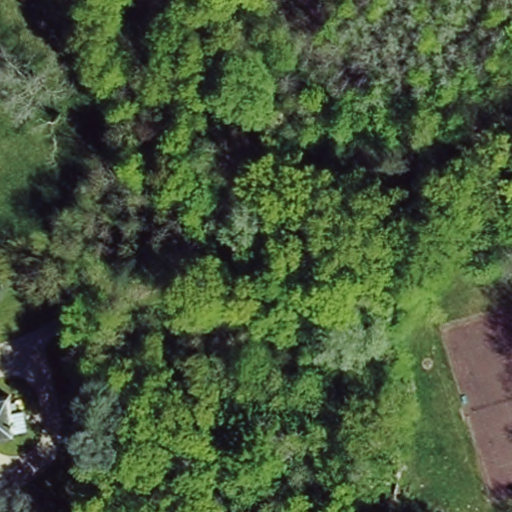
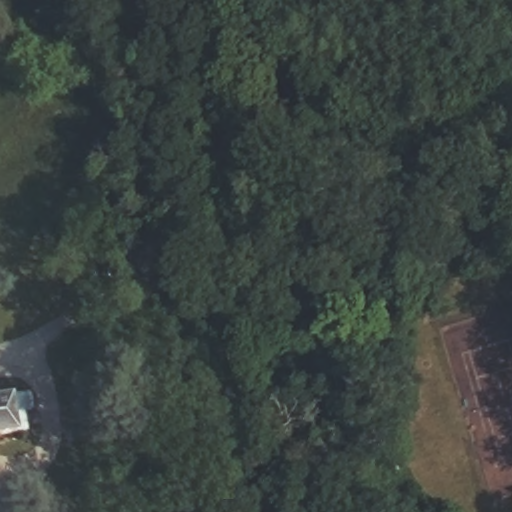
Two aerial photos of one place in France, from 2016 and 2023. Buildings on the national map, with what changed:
unchanged [(15,404),(25,403),(31,434),(0,439),(0,389),(10,387),(15,404)]

